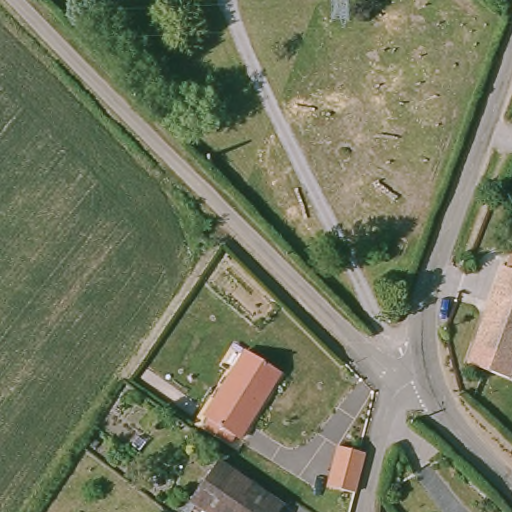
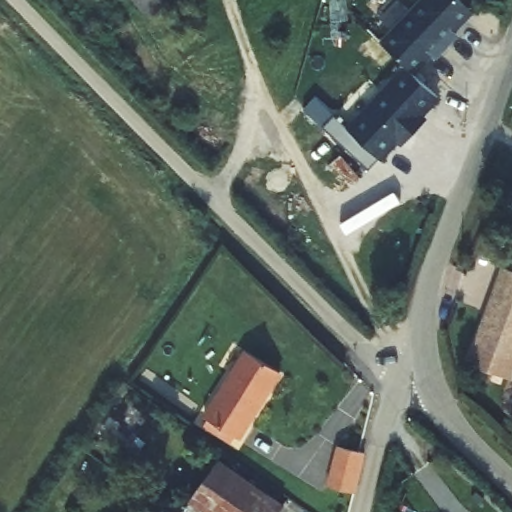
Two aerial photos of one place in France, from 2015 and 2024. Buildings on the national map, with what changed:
new [(133,0),(172,0),(149,20),(133,0)]
new [(451,33),(455,36),(432,60),(429,56),(410,75),(380,46),(424,0),(455,0),(470,14),(451,33)]
new [(455,0),(474,0),(465,10),(455,0)]
new [(437,101),(419,120),(422,124),(412,134),(409,130),(378,162),(345,131),(405,70),(437,101)]
new [(400,146),(397,143),(409,130),(412,134),(400,146)]
unchanged [(503,267),(512,270),(512,359),(475,345),(487,312),(491,310),(494,303),(492,299),(503,267)]
unchanged [(280,372),(239,439),(235,436),(230,443),(204,426),(207,420),(204,417),(245,351),(280,372)]
unchanged [(354,493),(327,486),(337,446),(364,453),(354,493)]
unchanged [(284,505),(279,512),(204,512),(190,502),(220,461),(284,505)]

